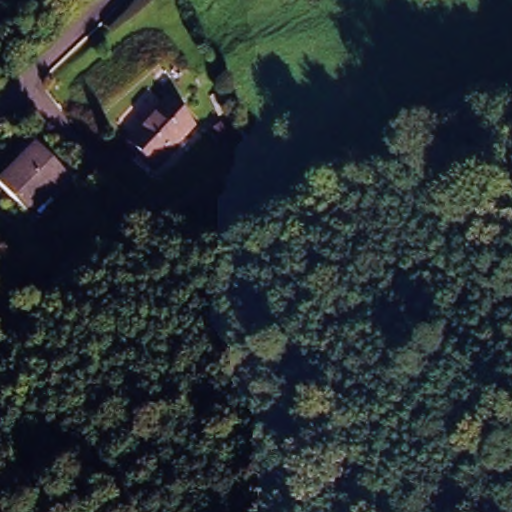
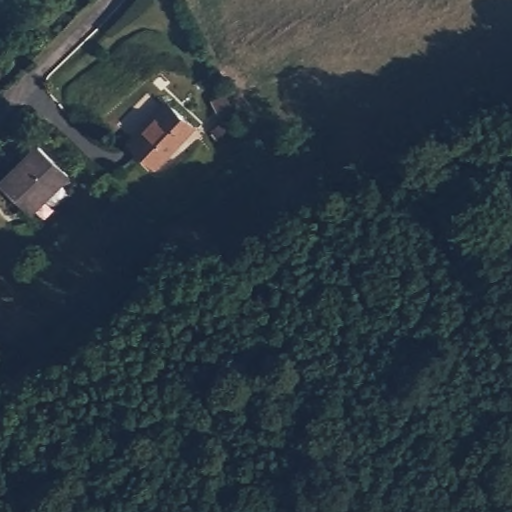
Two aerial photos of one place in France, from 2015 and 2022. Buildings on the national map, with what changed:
unchanged [(127,137),(168,97),(197,125),(156,165),(127,137)]
unchanged [(70,172),(32,210),(0,181),(0,179),(38,141),(70,172)]

